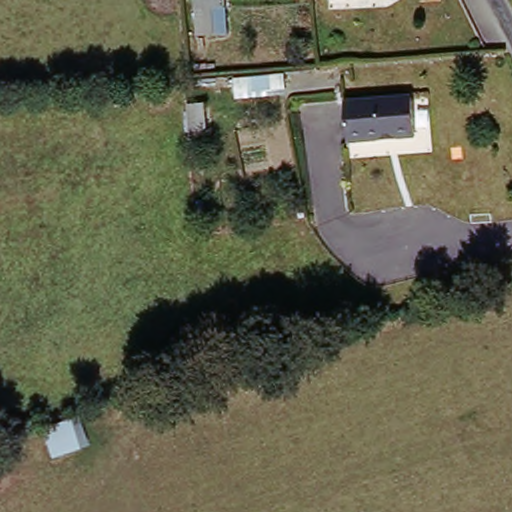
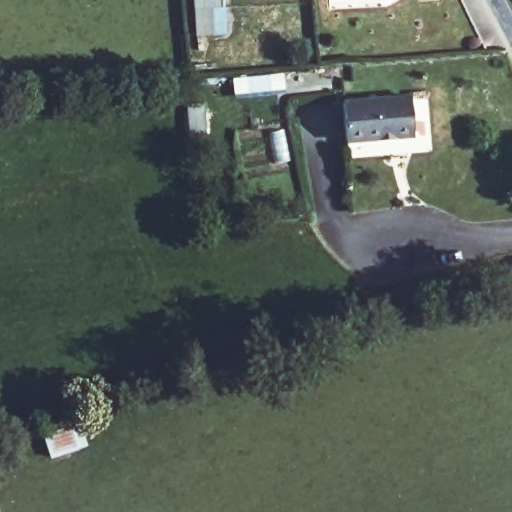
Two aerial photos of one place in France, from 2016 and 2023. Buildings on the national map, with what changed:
unchanged [(231,11),(221,12),(219,36),(212,37),(201,38),(200,0),(230,0),(231,11)]
unchanged [(288,73),(289,86),(265,88),(264,76),(288,73)]
unchanged [(416,98),(419,138),(353,144),(349,104),(416,98)]
unchanged [(210,106),(213,136),(197,138),(195,107),(210,106)]
unchanged [(71,426),(81,453),(57,461),(47,434),(71,426)]

